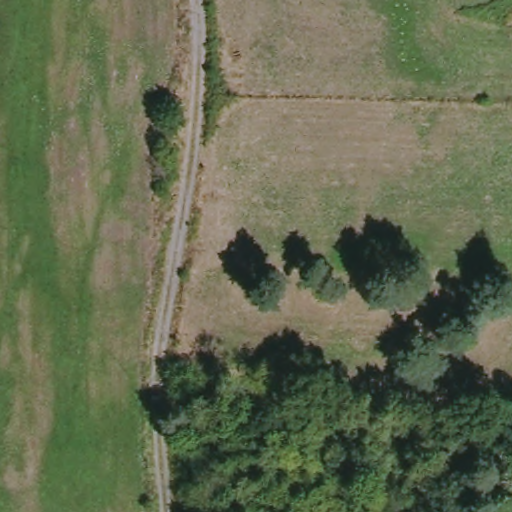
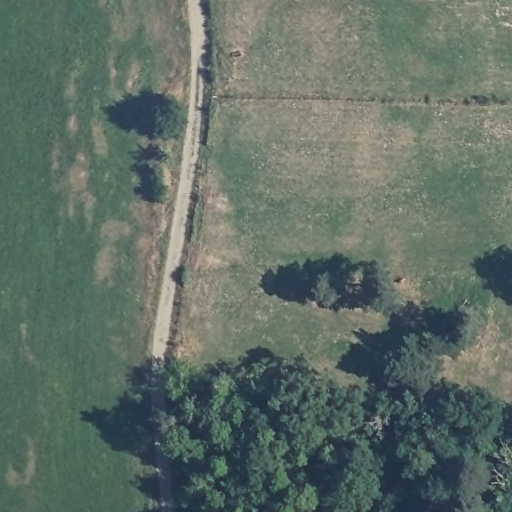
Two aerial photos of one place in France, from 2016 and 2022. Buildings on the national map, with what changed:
[]

